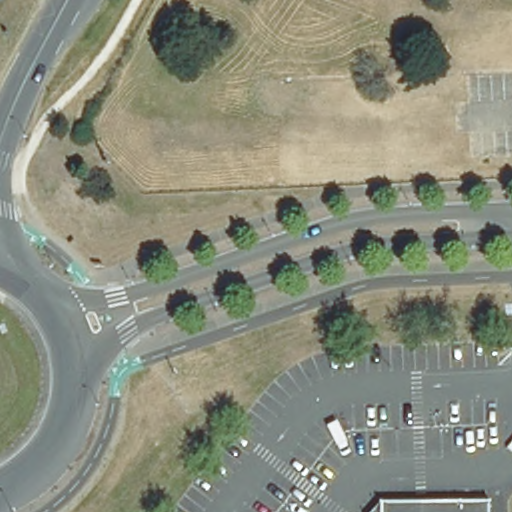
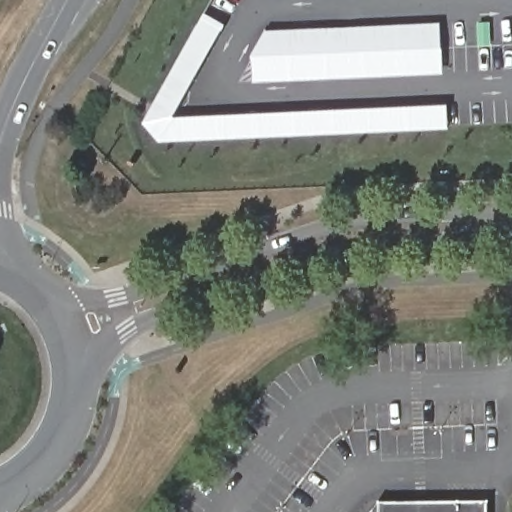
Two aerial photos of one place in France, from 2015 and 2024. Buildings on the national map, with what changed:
new [(178,119),(449,104),(449,127),(159,145),(142,124),(209,0),(243,0),(178,119)]
new [(250,57),(264,31),(440,22),(441,49),(442,74),(253,82),(252,57),(250,57)]
new [(491,47),(478,47),(478,23),(490,23),(491,47)]
unchanged [(377,512),(364,512),(377,498),(377,512)]
unchanged [(487,498),(488,512),(377,512),(377,498),(487,498)]

